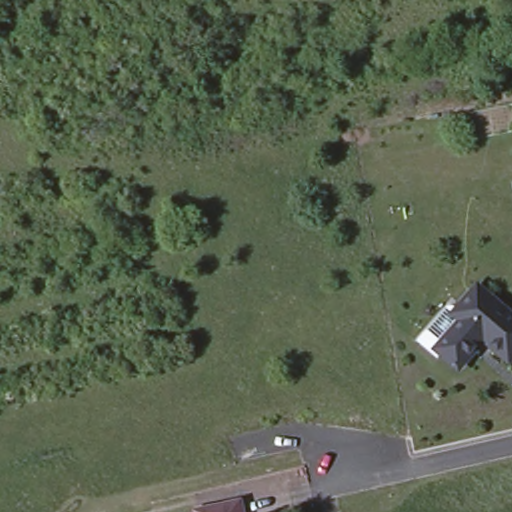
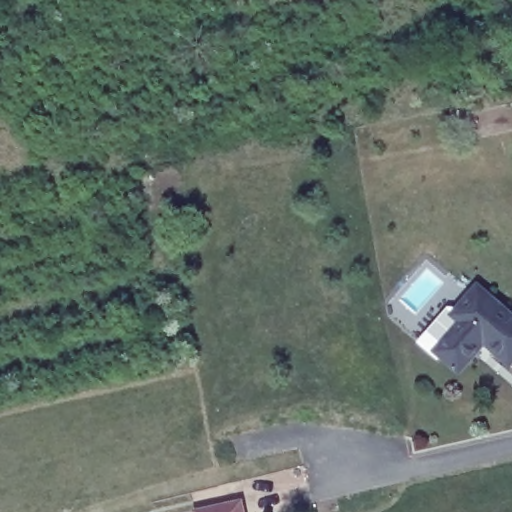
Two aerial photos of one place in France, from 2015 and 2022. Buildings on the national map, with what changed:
unchanged [(512,313),(512,360),(511,360),(491,343),(468,368),(460,369),(446,357),(442,361),(422,344),(452,309),(463,307),(482,287),(512,313)]
unchanged [(237,512),(190,512),(190,510),(234,499),(237,512)]

